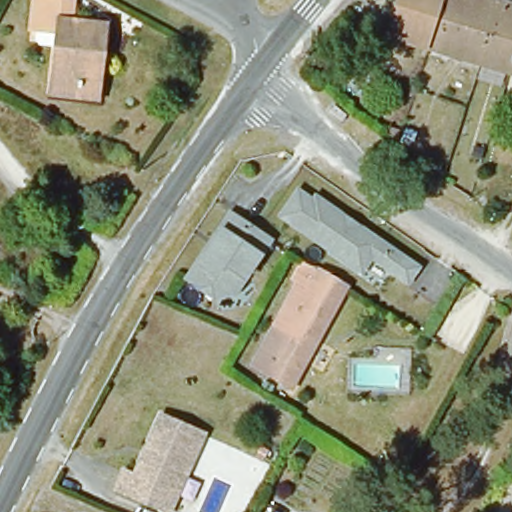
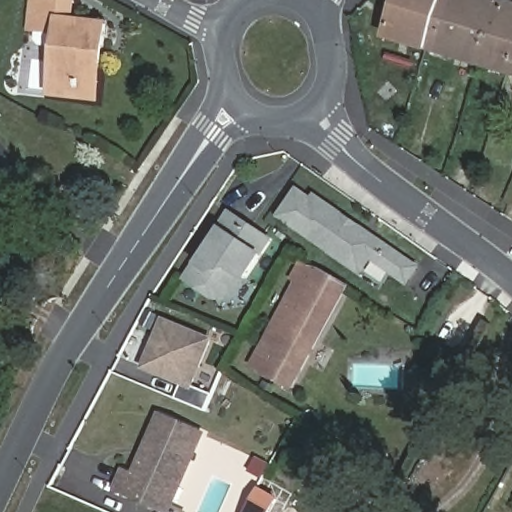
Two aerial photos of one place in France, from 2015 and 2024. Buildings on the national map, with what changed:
unchanged [(387,41),(398,0),(484,0),(512,8),(512,77),(387,41)]
unchanged [(48,97),(50,83),(56,36),(29,32),(33,1),(72,6),(69,22),(106,27),(103,50),(98,103),(48,97)]
unchanged [(318,197),(325,196),(423,265),(413,280),(377,254),(372,262),(361,264),(334,245),(333,246),(290,216),(289,209),(304,188),(318,197)]
unchanged [(229,220),(268,247),(233,300),(213,304),(185,286),(229,220)]
unchanged [(294,288),(305,270),(321,280),(323,276),(352,293),(350,297),(299,390),(295,398),(253,375),(299,291),(294,288)]
new [(213,395),(205,411),(176,398),(181,386),(140,367),(162,317),(214,338),(194,387),(213,395)]
demolished [(401,422),(381,412),(395,386),(415,397),(401,422)]
unchanged [(208,437),(168,512),(118,485),(127,468),(137,473),(145,461),(153,458),(156,452),(153,445),(169,416),(208,437)]

